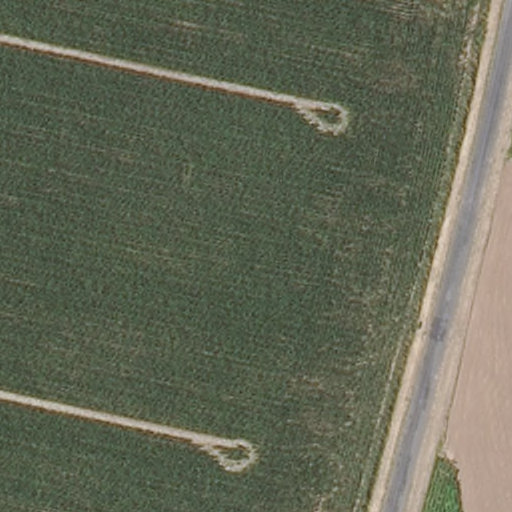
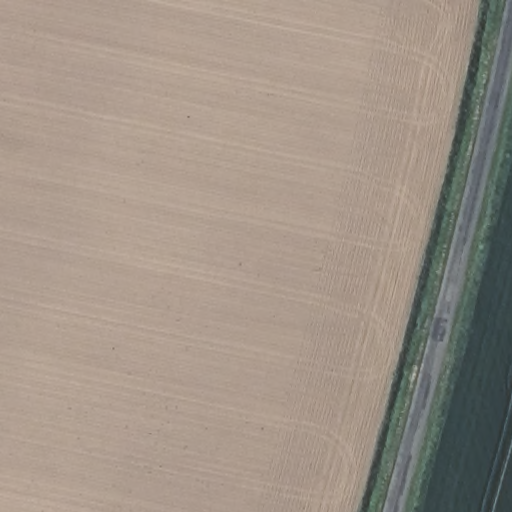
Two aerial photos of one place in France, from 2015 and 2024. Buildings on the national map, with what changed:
[]

